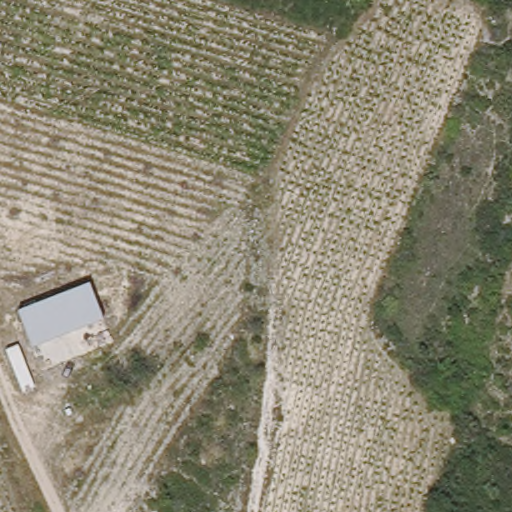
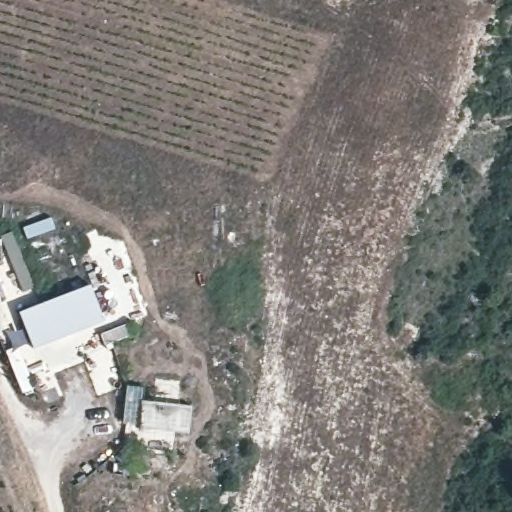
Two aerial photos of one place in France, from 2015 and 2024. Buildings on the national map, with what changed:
unchanged [(17,310),(89,283),(103,320),(32,345),(17,310)]
new [(191,404),(188,432),(137,427),(142,400),(191,404)]

